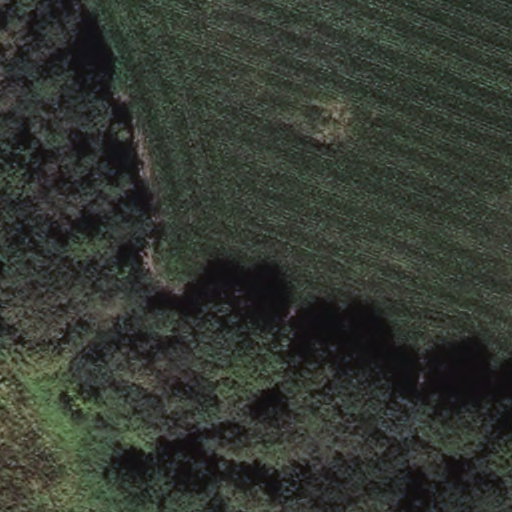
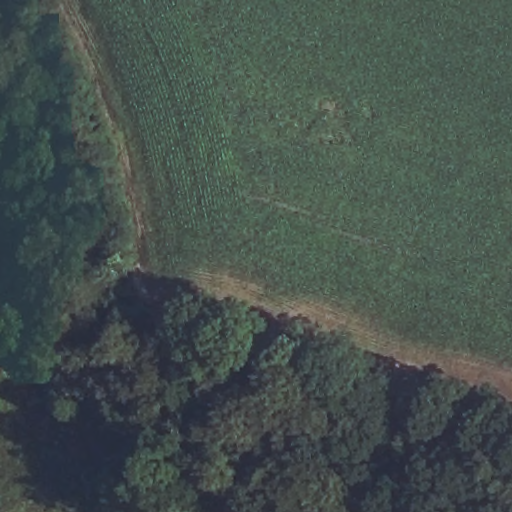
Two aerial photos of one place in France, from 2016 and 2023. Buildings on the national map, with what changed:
[]

